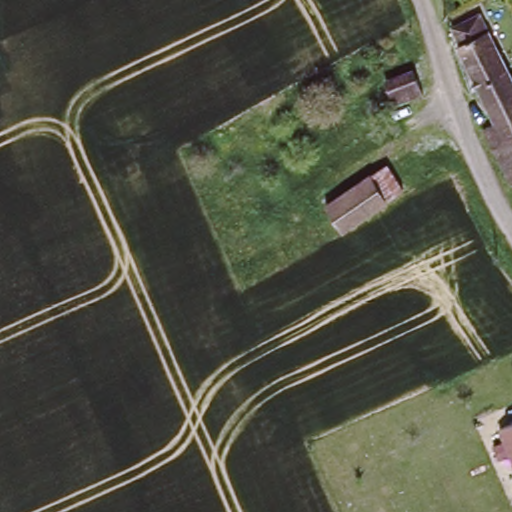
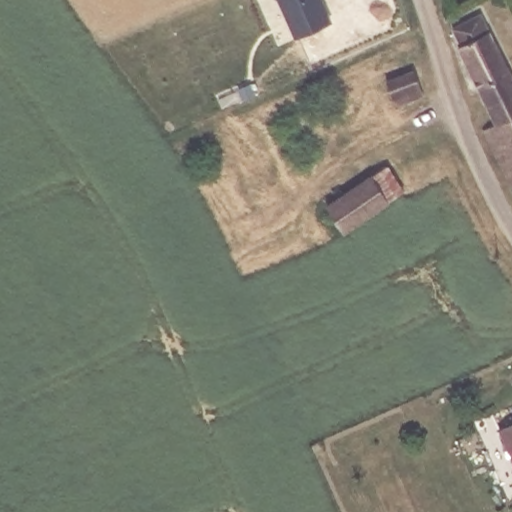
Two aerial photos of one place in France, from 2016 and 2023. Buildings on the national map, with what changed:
new [(322,0),(331,22),(294,38),(278,0),(322,0)]
unchanged [(467,37),(477,31),(470,19),(482,13),(512,72),(512,135),(492,146),(482,126),(504,115),(467,37)]
unchanged [(423,90),(399,101),(387,76),(412,65),(423,90)]
unchanged [(512,185),(512,186),(492,146),(512,135),(512,185)]
unchanged [(403,184),(343,226),(327,202),(387,161),(403,184)]
unchanged [(512,423),(512,443),(505,427),(512,423)]

